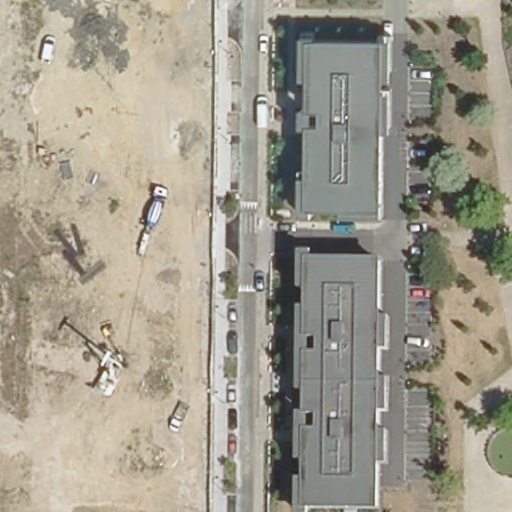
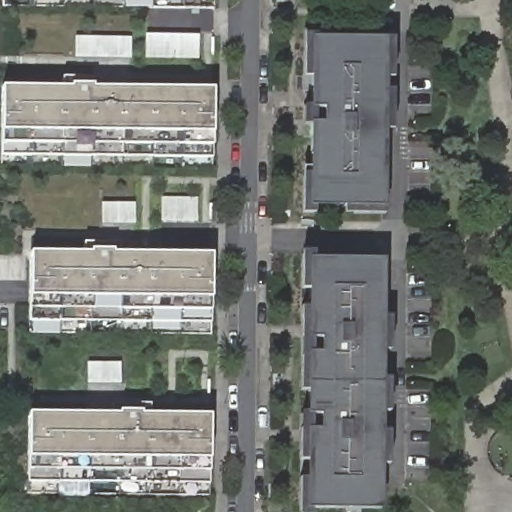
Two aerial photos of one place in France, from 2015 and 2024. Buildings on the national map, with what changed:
new [(2,5),(2,0),(214,0),(214,9),(2,5)]
new [(145,59),(145,35),(198,34),(199,59),(145,59)]
unchanged [(392,79),(386,78),(386,91),(394,92),(392,132),(386,133),(385,215),(346,215),(345,207),(315,207),(314,215),(301,215),(302,175),(309,175),(309,125),(302,124),(303,107),(311,107),(311,78),(303,78),(303,34),(319,35),(320,39),(393,39),(392,79)]
new [(212,132),(211,170),(1,167),(2,130),(2,86),(213,89),(212,132)]
new [(211,298),(211,335),(27,333),(30,295),(31,252),(211,254),(211,298)]
unchanged [(383,316),(391,316),(390,351),(383,350),(383,378),(391,378),(391,414),(383,414),(383,431),(392,432),(391,466),(385,466),(382,510),(312,509),(312,512),(301,512),(301,477),(307,477),(307,462),(301,462),(302,412),(308,412),(308,391),(301,390),(302,307),(309,307),(309,288),(301,288),(301,252),(316,252),(317,258),(383,260),(383,316)]
new [(209,458),(207,495),(26,493),(27,456),(29,412),(209,415),(209,458)]

